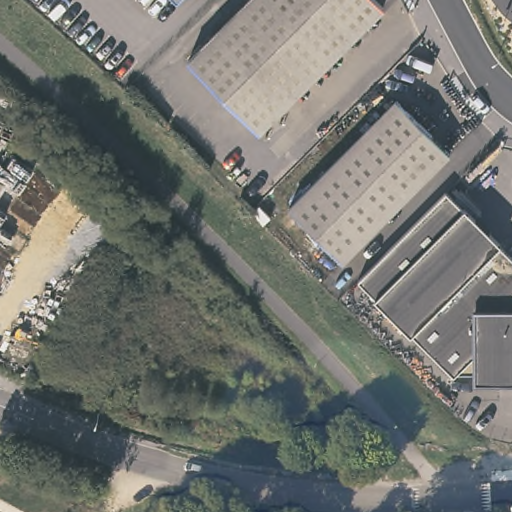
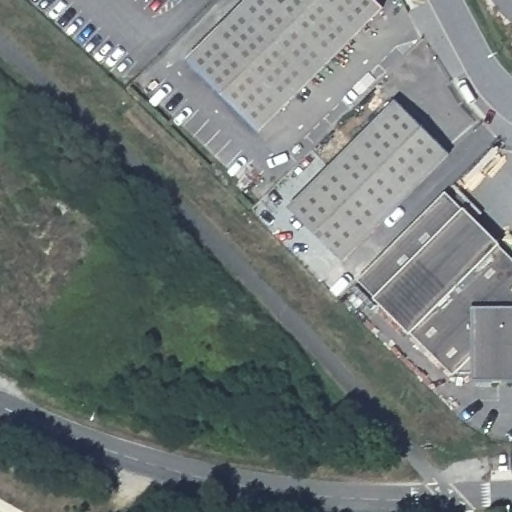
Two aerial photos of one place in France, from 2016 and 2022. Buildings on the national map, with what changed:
unchanged [(270,121),(199,50),(251,0),(390,0),(270,121)]
unchanged [(453,150),(344,259),(291,205),(404,99),(453,150)]
unchanged [(462,204),(474,215),(499,240),(498,241),(499,242),(512,254),(512,367),(457,368),(454,371),(435,353),(420,340),(374,295),(375,294),(357,277),(444,188),(461,205),(462,204)]

